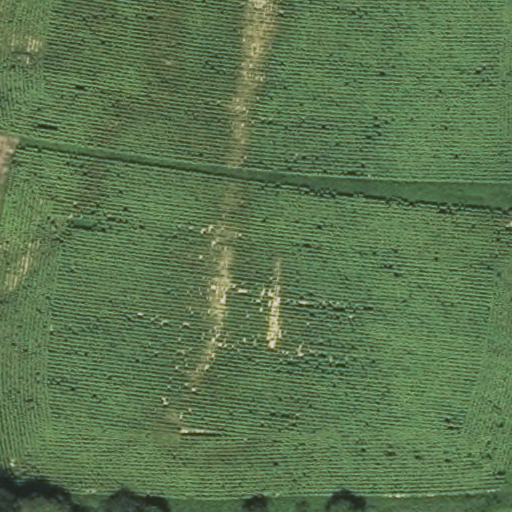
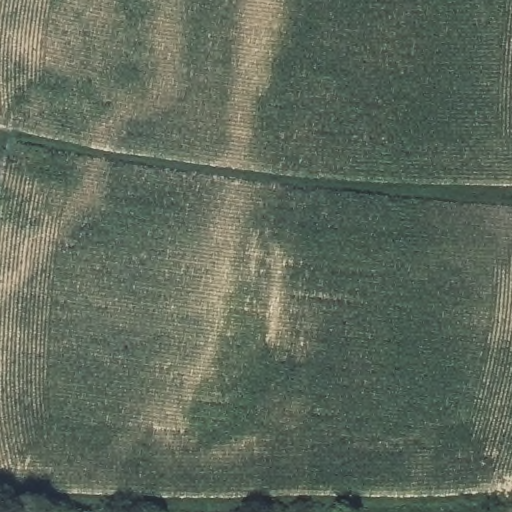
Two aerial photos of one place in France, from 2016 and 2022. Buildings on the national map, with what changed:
[]

